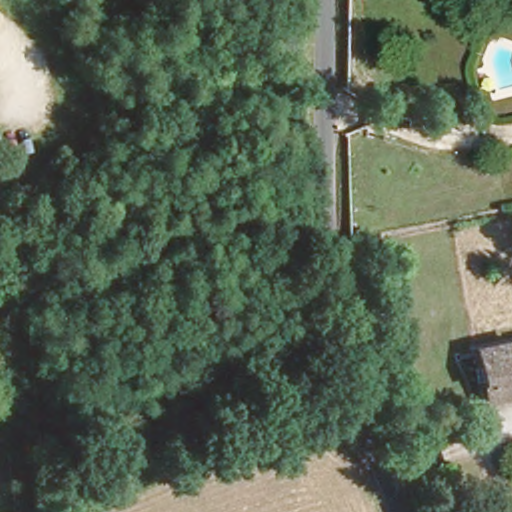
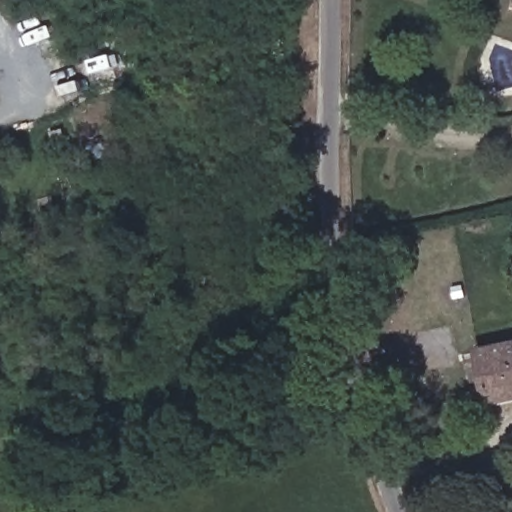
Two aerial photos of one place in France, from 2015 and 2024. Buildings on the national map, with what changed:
unchanged [(481,397),(470,344),(512,335),(512,390),(481,397)]

